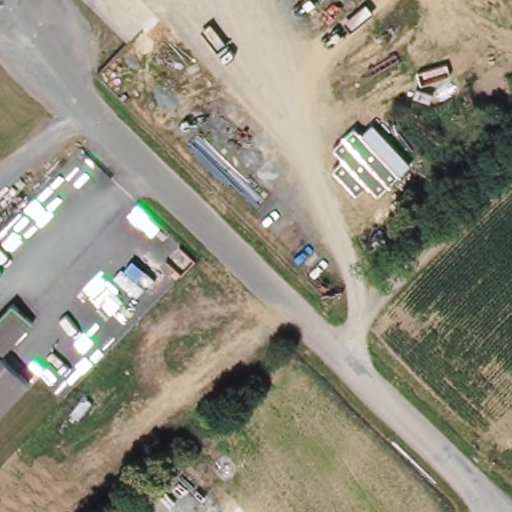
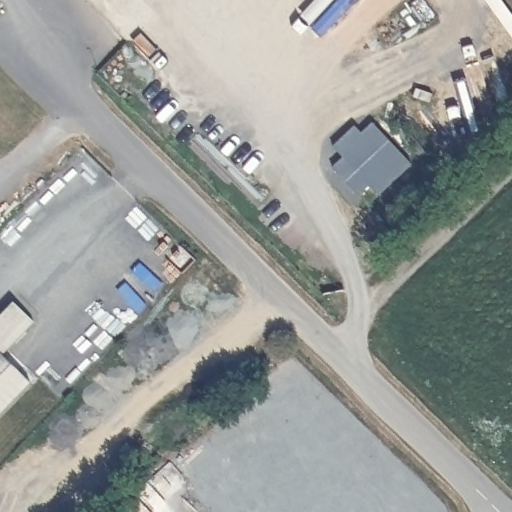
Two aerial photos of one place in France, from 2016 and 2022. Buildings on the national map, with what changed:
new [(343,158),(333,147),(355,126),(362,134),(373,123),(411,164),(378,195),(368,184),(357,195),(332,168),(343,158)]
unchanged [(34,323),(1,356),(30,385),(0,416),(0,318),(14,304),(34,323)]

